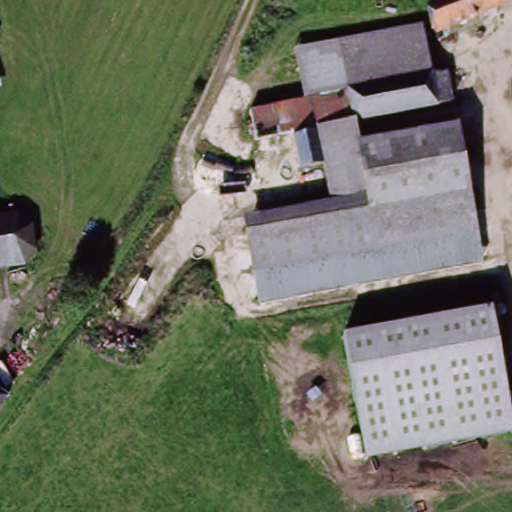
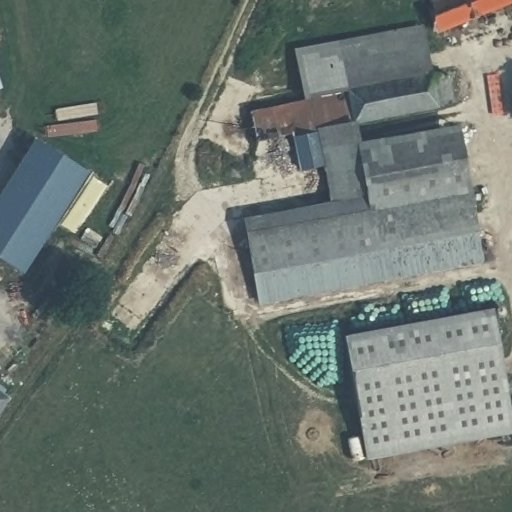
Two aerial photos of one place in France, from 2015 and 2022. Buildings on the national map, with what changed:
unchanged [(437,29),(425,0),(511,0),(437,29)]
unchanged [(413,22),(424,73),(342,91),(331,40),(413,22)]
new [(342,91),(303,99),(293,47),(331,40),(342,91)]
unchanged [(342,91),(424,73),(440,70),(447,99),(350,120),(321,126),(312,128),(318,161),(292,166),(285,130),(250,137),(246,112),(342,91)]
unchanged [(365,193),(337,199),(321,126),(350,120),(355,144),(365,193)]
unchanged [(252,273),(245,234),(368,207),(365,193),(355,144),(455,124),(475,229),(252,273)]
new [(93,177),(29,275),(0,253),(0,177),(29,132),(93,177)]
demolished [(32,232),(35,254),(17,273),(0,274),(0,219),(15,218),(32,232)]
unchanged [(475,229),(481,259),(257,303),(252,273),(475,229)]
unchanged [(342,336),(490,307),(512,419),(512,432),(365,459),(342,336)]
unchanged [(0,406),(0,397),(4,400),(0,406)]

